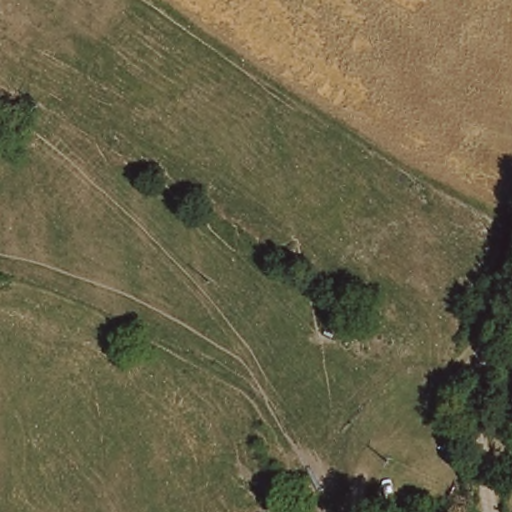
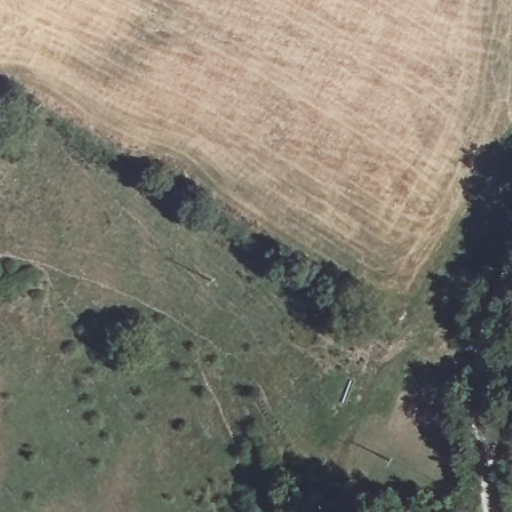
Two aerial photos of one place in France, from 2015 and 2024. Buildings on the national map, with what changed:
[]

